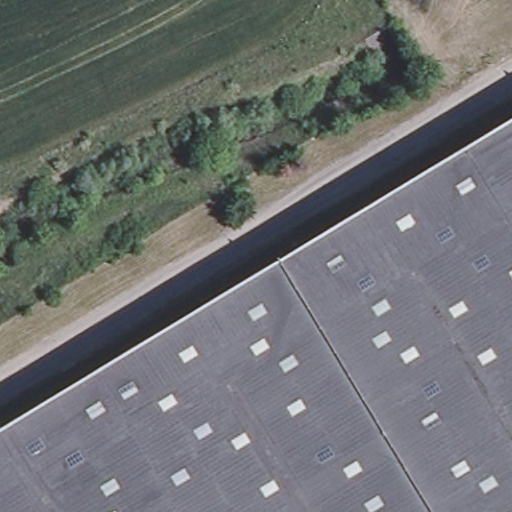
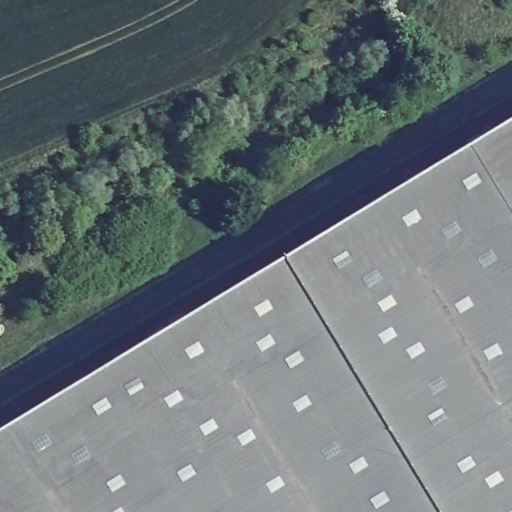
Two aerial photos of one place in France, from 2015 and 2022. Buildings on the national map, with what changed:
unchanged [(0,512),(0,431),(73,387),(512,122),(512,512),(0,512)]

